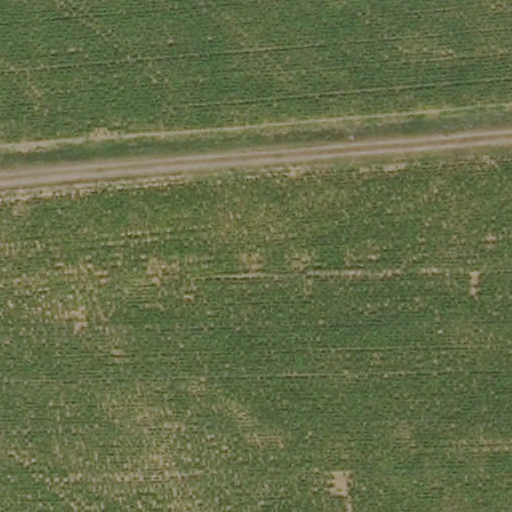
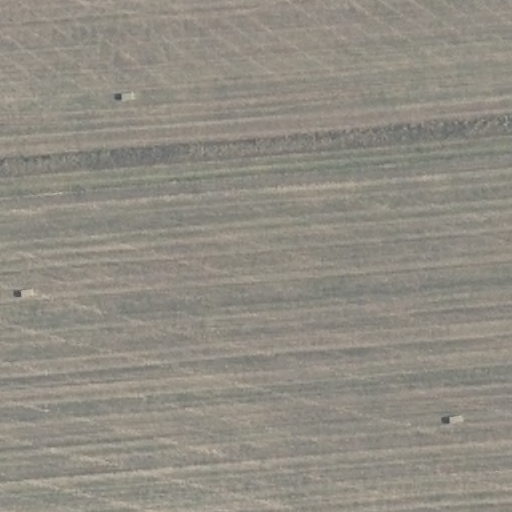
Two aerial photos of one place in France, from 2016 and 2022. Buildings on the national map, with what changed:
[]

